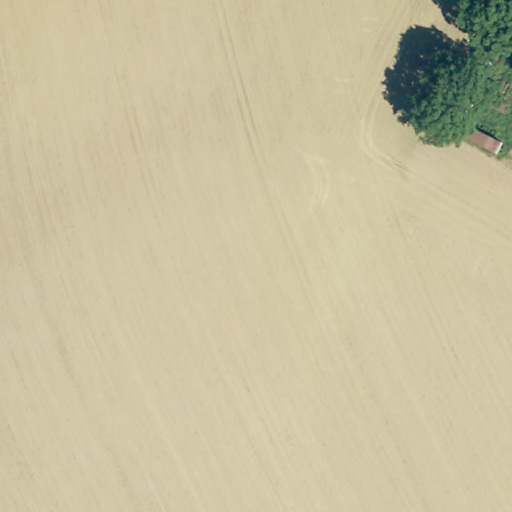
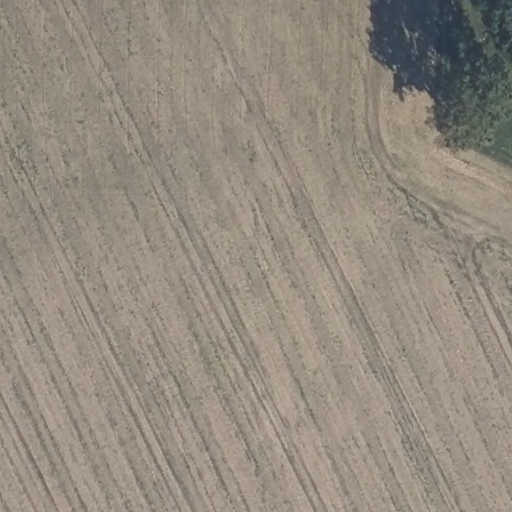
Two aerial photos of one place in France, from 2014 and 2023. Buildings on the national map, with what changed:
[]

